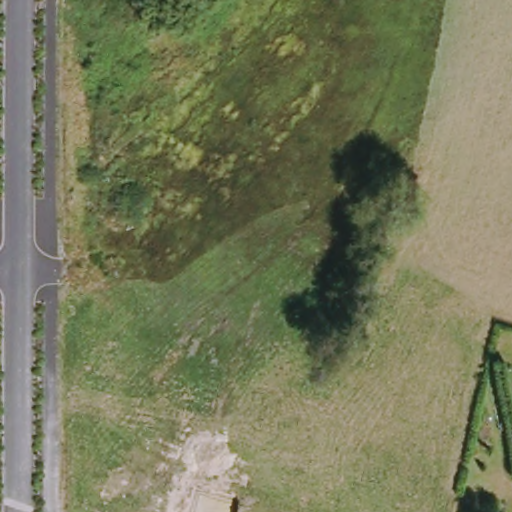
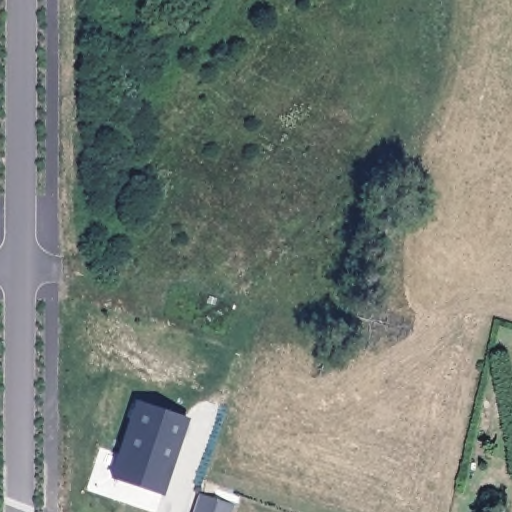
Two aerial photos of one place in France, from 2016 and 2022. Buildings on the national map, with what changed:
new [(136,400),(191,418),(165,495),(110,478),(136,400)]
new [(233,504),(231,512),(195,512),(200,494),(233,504)]

